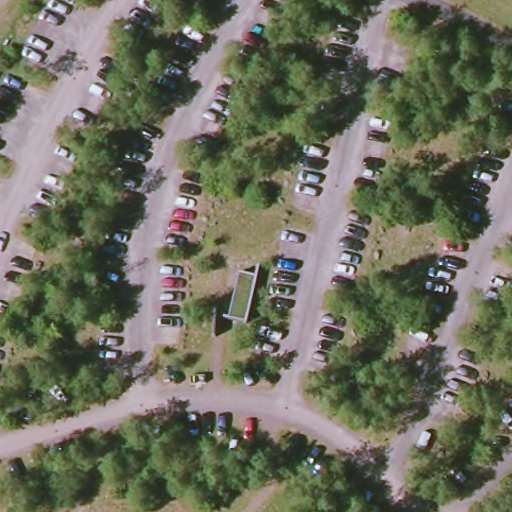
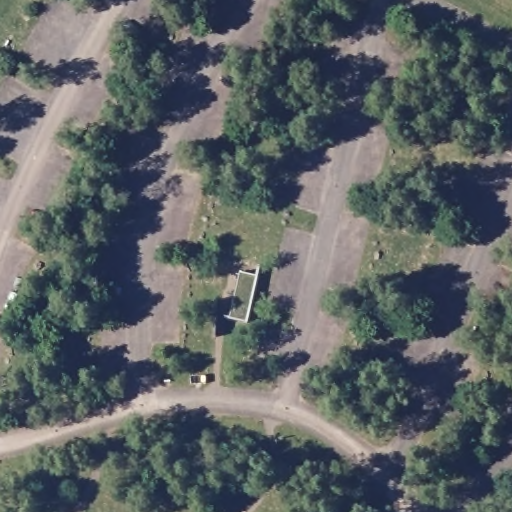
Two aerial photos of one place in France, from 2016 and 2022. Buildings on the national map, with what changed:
unchanged [(230,318),(242,273),(260,277),(249,323),(230,318)]

